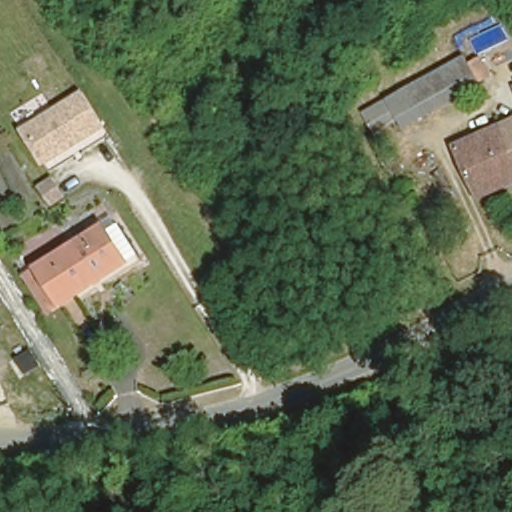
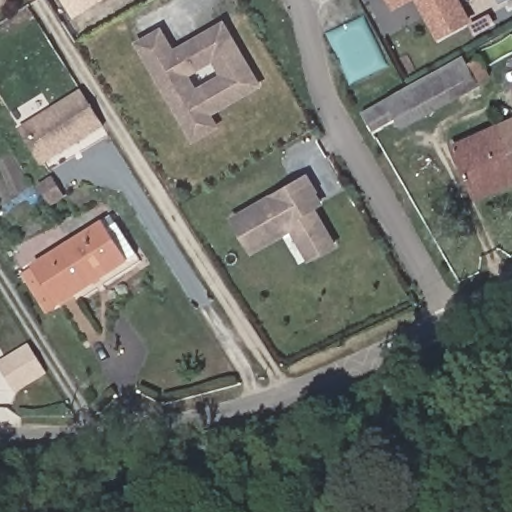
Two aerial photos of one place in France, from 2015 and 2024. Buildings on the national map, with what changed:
new [(74,18),(63,0),(102,0),(74,18)]
new [(395,11),(389,0),(414,0),(395,11)]
new [(473,21),(437,40),(416,0),(462,0),(473,21)]
new [(213,114),(220,126),(192,142),(136,42),(163,26),(174,47),(224,18),(263,86),(213,114)]
unchanged [(479,81),(399,129),(394,116),(373,127),(360,104),(466,49),(479,81)]
unchanged [(74,95),(96,129),(36,169),(21,146),(15,135),(24,129),(74,95)]
unchanged [(512,111),(512,121),(502,125),(478,138),(499,184),(476,195),(450,140),(512,111)]
unchanged [(502,125),(512,121),(512,147),(502,125)]
unchanged [(499,184),(478,138),(502,125),(512,147),(512,179),(499,184)]
new [(308,260),(291,230),(251,253),(230,217),(308,172),(319,191),(317,191),(324,203),(317,206),(338,244),(308,260)]
unchanged [(123,260),(56,303),(34,265),(100,222),(111,215),(118,227),(134,253),(123,260)]
new [(0,370),(0,362),(29,344),(48,374),(15,394),(0,370)]

